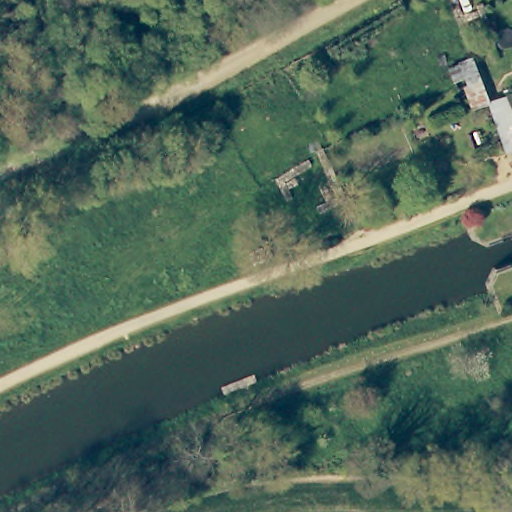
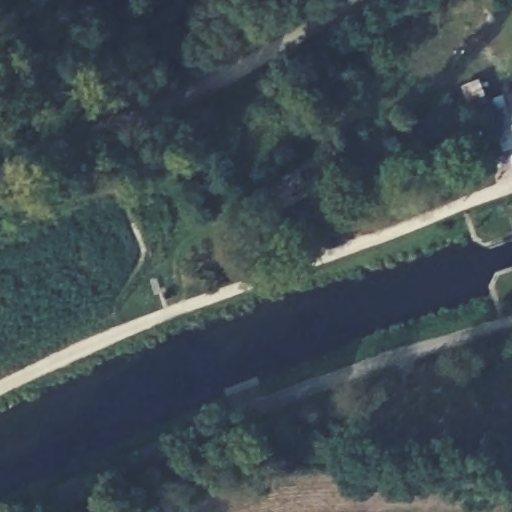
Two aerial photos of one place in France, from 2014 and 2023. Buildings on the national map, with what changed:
unchanged [(484,107),(470,112),(455,70),(468,65),(484,107)]
unchanged [(512,132),(501,100),(512,96),(512,132)]

